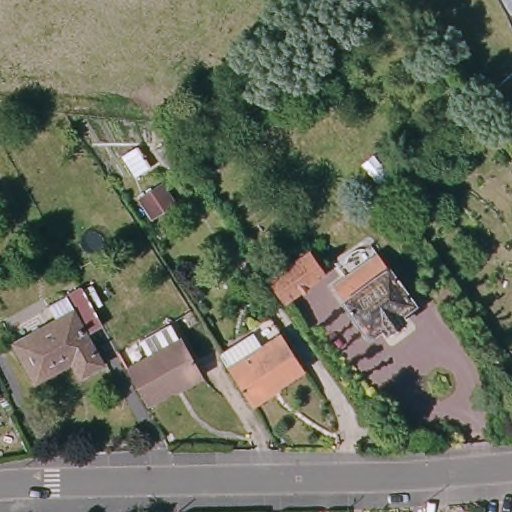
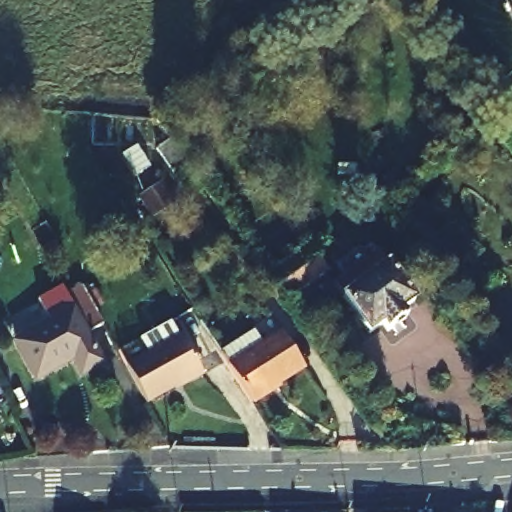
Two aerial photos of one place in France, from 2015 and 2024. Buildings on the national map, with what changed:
unchanged [(497,0),(512,0),(512,25),(504,15),(497,0)]
unchanged [(324,272),(284,302),(268,279),(308,250),(324,272)]
unchanged [(362,283),(352,269),(376,252),(386,265),(387,264),(414,301),(398,313),(402,318),(385,330),(380,325),(365,335),(340,299),(362,283)]
unchanged [(87,334),(104,365),(80,378),(70,362),(34,382),(13,344),(54,321),(46,308),(81,288),(102,326),(87,334)]
unchanged [(281,334),(304,369),(250,404),(227,368),(281,334)]
unchanged [(180,338),(201,375),(146,406),(125,368),(180,338)]
unchanged [(512,340),(512,346),(509,341),(512,340)]

